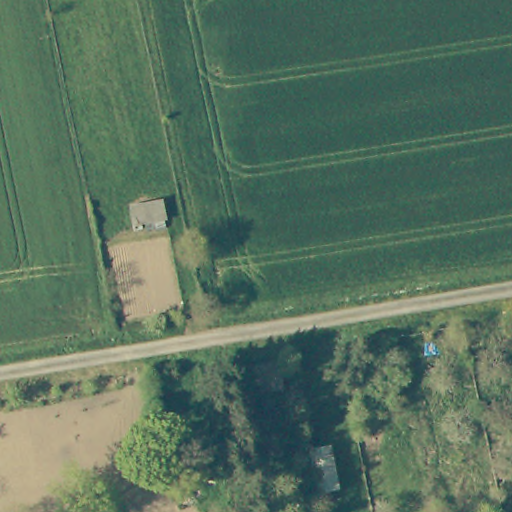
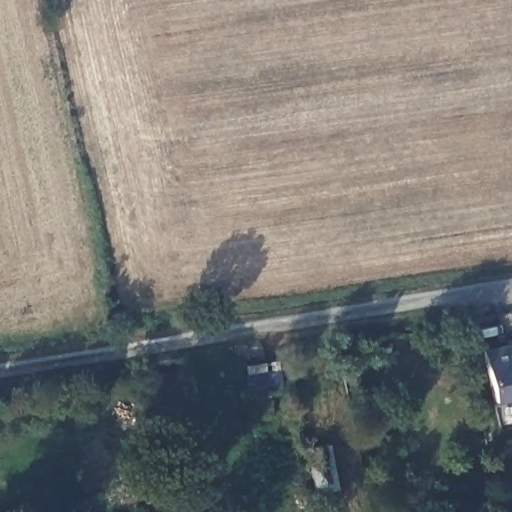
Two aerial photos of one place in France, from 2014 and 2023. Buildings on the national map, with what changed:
new [(496,403),(486,351),(512,345),(512,401),(496,403)]
unchanged [(308,446),(334,438),(342,488),(317,493),(308,446)]

